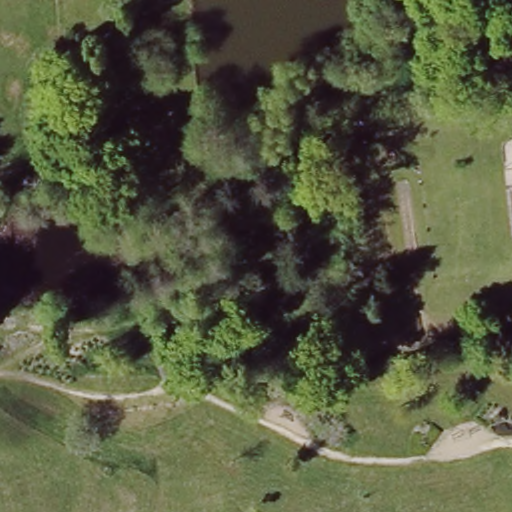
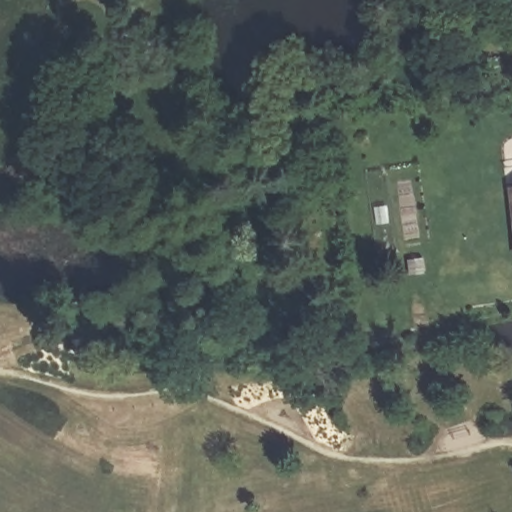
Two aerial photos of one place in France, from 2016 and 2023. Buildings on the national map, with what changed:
unchanged [(503,169),(512,167),(508,143),(512,142),(512,226),(503,169)]

